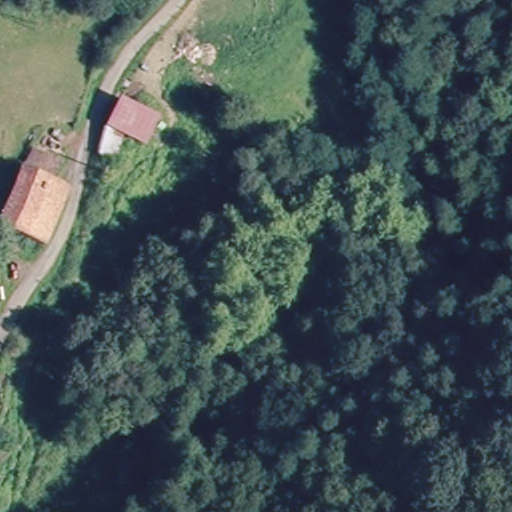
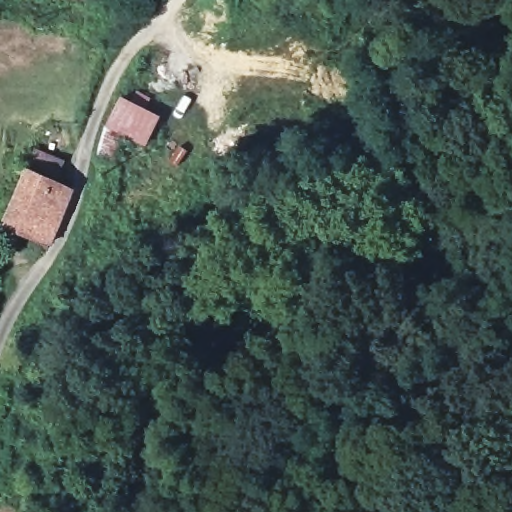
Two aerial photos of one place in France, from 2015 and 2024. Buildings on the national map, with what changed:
unchanged [(148,135),(127,128),(114,161),(95,152),(116,94),(154,111),(148,135)]
unchanged [(40,247),(4,231),(0,229),(0,209),(16,174),(27,154),(57,164),(46,185),(63,193),(40,247)]

